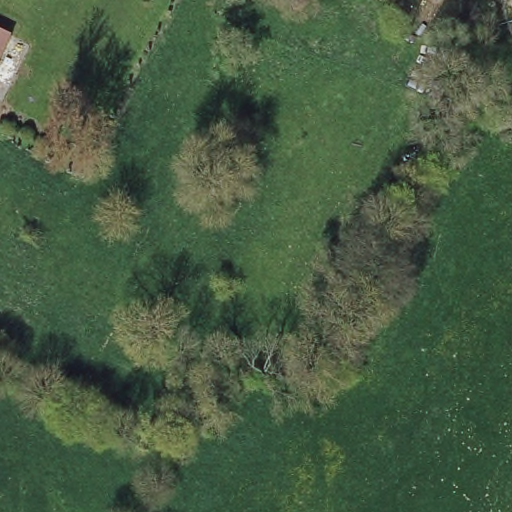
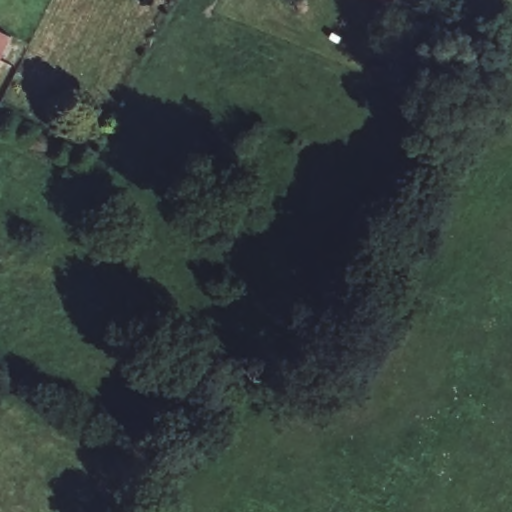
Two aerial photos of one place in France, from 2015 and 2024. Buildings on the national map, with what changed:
unchanged [(394,9),(374,0),(398,0),(394,9)]
unchanged [(21,24),(13,39),(0,32),(0,12),(3,14),(21,24)]
unchanged [(11,41),(14,43),(3,67),(0,66),(0,36),(11,41)]

